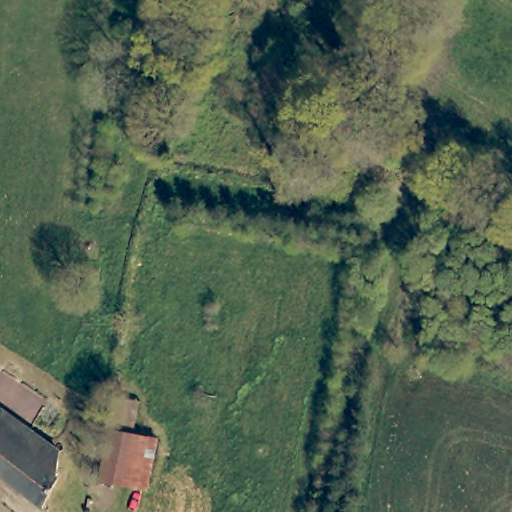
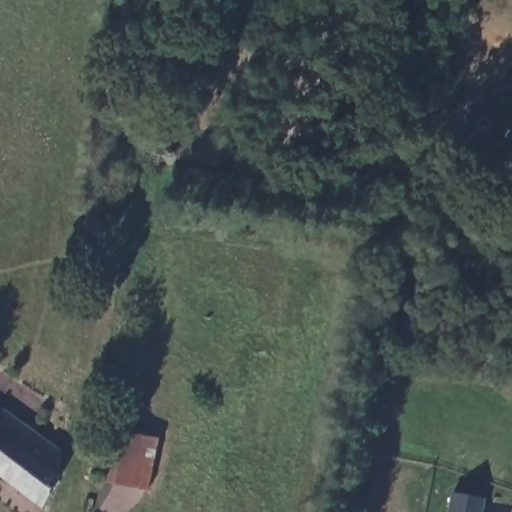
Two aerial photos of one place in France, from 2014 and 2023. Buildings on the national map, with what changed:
unchanged [(19,453),(23,457),(4,481),(0,478),(0,405),(32,432),(19,453)]
unchanged [(155,487),(111,480),(120,430),(163,438),(155,487)]
unchanged [(50,474),(61,483),(47,512),(42,512),(4,481),(23,457),(19,453),(32,432),(63,458),(50,474)]
new [(486,499),(484,512),(452,512),(455,493),(486,499)]

